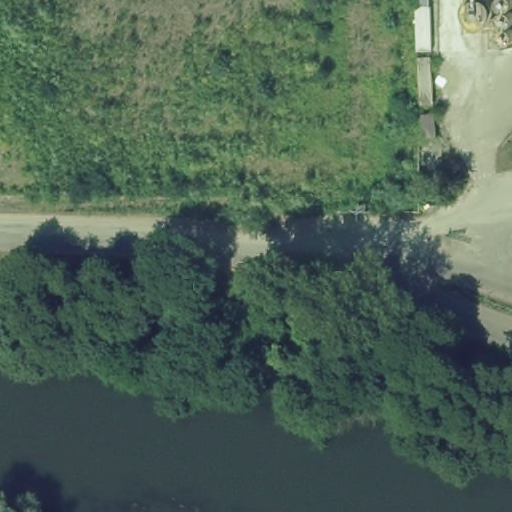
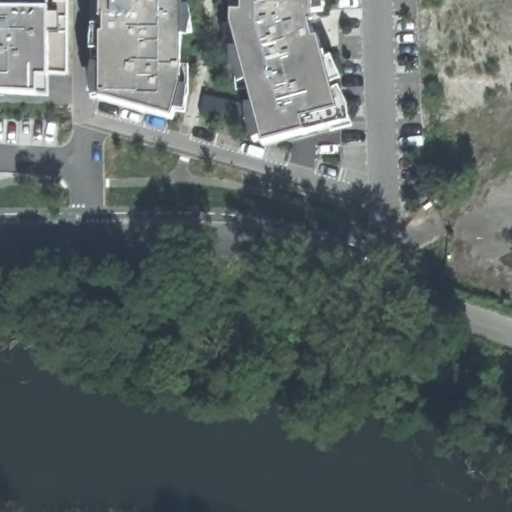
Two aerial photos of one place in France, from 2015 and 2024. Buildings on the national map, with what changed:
new [(67,74),(49,74),(49,96),(0,94),(0,0),(68,0),(67,74)]
new [(93,27),(101,27),(100,0),(182,0),(182,9),(189,9),(192,33),(182,35),(182,87),(189,89),(186,113),(175,112),(172,119),(99,98),(92,99),(94,62),(100,63),(100,53),(91,51),(93,27)]
new [(324,12),(313,13),(315,23),(312,30),(314,39),(319,38),(324,56),(330,54),(338,71),(340,89),(333,90),(337,106),(343,105),(352,126),(332,132),(330,127),(262,145),(261,140),(255,143),(245,120),(255,115),(247,90),(237,91),(234,67),(241,66),(239,58),(232,61),(225,45),(224,25),(230,24),(231,0),(322,0),(324,12)]
demolished [(512,41),(472,42),(473,0),(512,0),(512,41)]
new [(436,113),(437,135),(426,136),(424,115),(436,113)]

